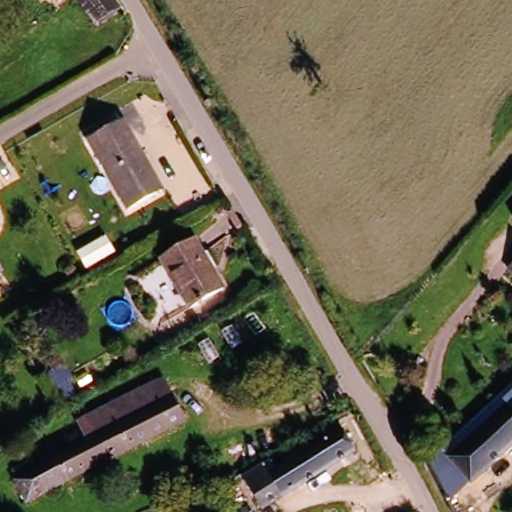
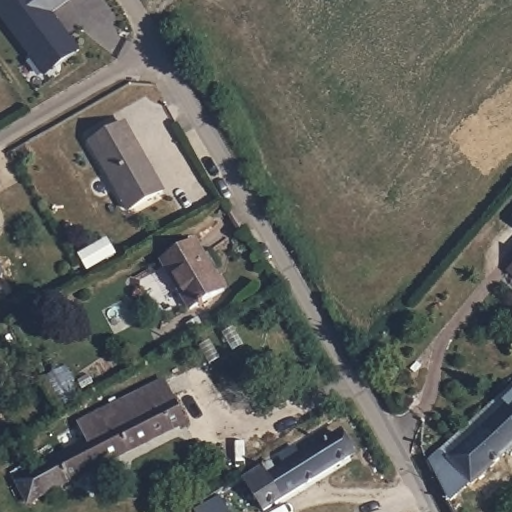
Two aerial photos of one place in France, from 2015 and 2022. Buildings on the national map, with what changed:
new [(34,61),(0,15),(0,3),(3,0),(74,0),(51,17),(61,31),(58,36),(68,39),(70,41),(80,54),(57,71),(47,78),(34,61)]
demolished [(117,10),(118,11),(94,27),(75,1),(74,0),(110,0),(117,10)]
unchanged [(163,192),(129,211),(91,143),(125,124),(163,192)]
unchanged [(225,292),(190,312),(162,262),(196,242),(225,292)]
unchanged [(512,263),(512,274),(507,268),(512,263)]
unchanged [(0,279),(0,266),(5,276),(0,279)]
unchanged [(449,440),(460,431),(512,382),(512,392),(512,398),(457,448),(449,440)]
unchanged [(91,437),(167,398),(180,423),(103,462),(91,437)]
unchanged [(262,509),(242,480),(269,462),(275,470),(283,465),(277,457),(293,447),(297,456),(333,433),(347,457),(262,509)]
unchanged [(27,460),(32,468),(49,458),(91,437),(103,462),(62,482),(23,502),(12,480),(7,471),(27,460)]
unchanged [(442,462),(436,452),(449,440),(457,448),(478,471),(456,492),(442,462)]
unchanged [(207,512),(187,512),(202,504),(207,512)]

